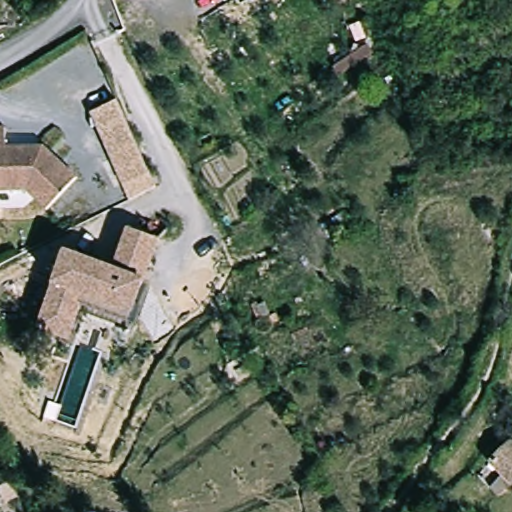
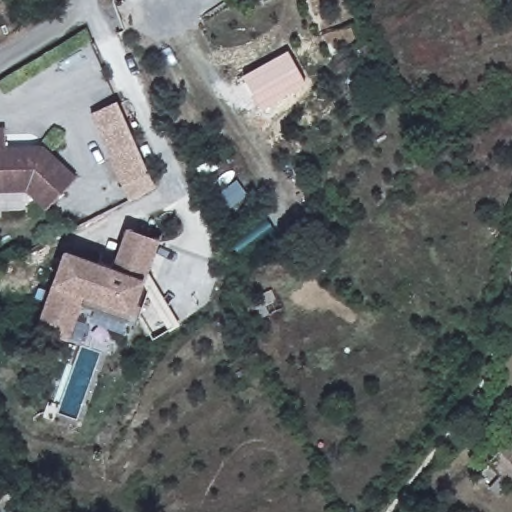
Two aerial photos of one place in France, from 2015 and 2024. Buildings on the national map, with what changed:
new [(262,110),(242,77),(287,51),(307,85),(262,110)]
unchanged [(128,201),(122,185),(90,114),(116,103),(150,176),(155,189),(128,201)]
unchanged [(10,151),(47,148),(82,178),(52,211),(29,191),(0,194),(0,131),(8,130),(10,151)]
unchanged [(124,224),(165,240),(133,323),(87,305),(72,340),(43,327),(72,254),(107,267),(124,224)]
unchanged [(499,493),(478,475),(510,442),(512,444),(512,480),(499,493)]

